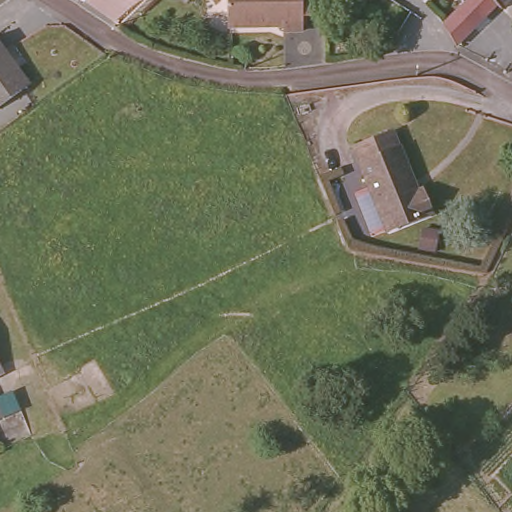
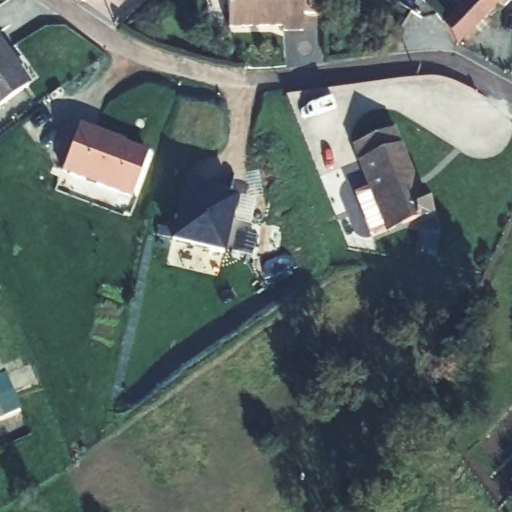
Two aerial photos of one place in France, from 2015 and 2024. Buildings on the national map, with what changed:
unchanged [(78,0),(83,0),(82,2),(78,0)]
unchanged [(287,25),(287,19),(230,24),(228,0),(304,0),(307,22),(287,25)]
unchanged [(487,22),(457,51),(444,27),(470,0),(512,0),(512,6),(492,27),(487,22)]
unchanged [(9,65),(25,89),(0,106),(0,47),(12,62),(9,65)]
new [(150,150),(132,198),(62,172),(80,124),(150,150)]
unchanged [(435,214),(389,232),(377,206),(369,183),(356,151),(357,149),(376,142),(396,134),(420,194),(425,192),(432,209),(435,214)]
new [(170,242),(184,185),(237,198),(224,254),(170,242)]
unchanged [(0,382),(0,358),(9,378),(0,382)]
unchanged [(0,420),(0,401),(6,417),(0,420)]

